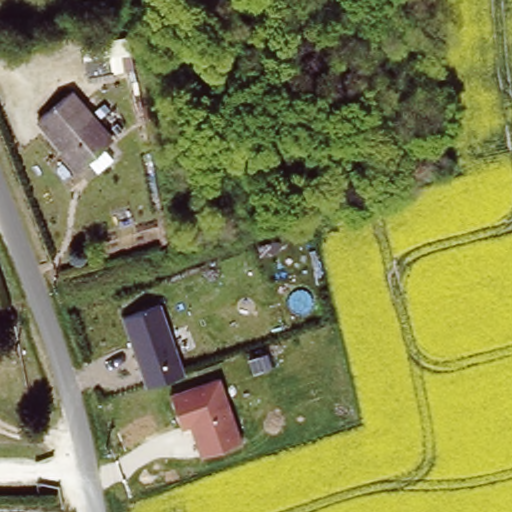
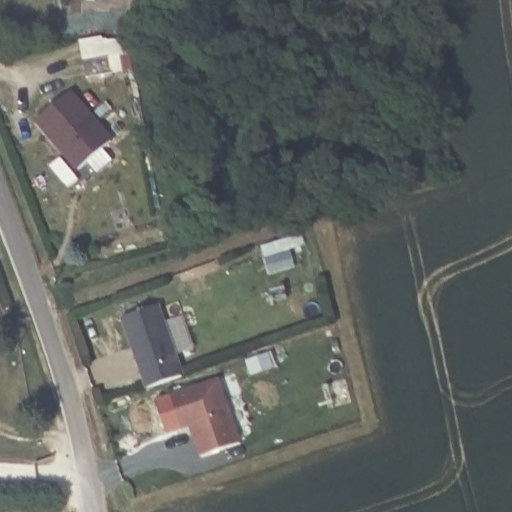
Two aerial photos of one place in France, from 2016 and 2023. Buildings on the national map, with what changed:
unchanged [(80,42),(136,30),(143,67),(86,81),(80,42)]
unchanged [(116,137),(79,169),(38,118),(76,87),(116,137)]
unchanged [(147,389),(120,316),(159,304),(184,375),(147,389)]
unchanged [(220,377),(242,443),(199,458),(189,428),(180,430),(170,394),(220,377)]

